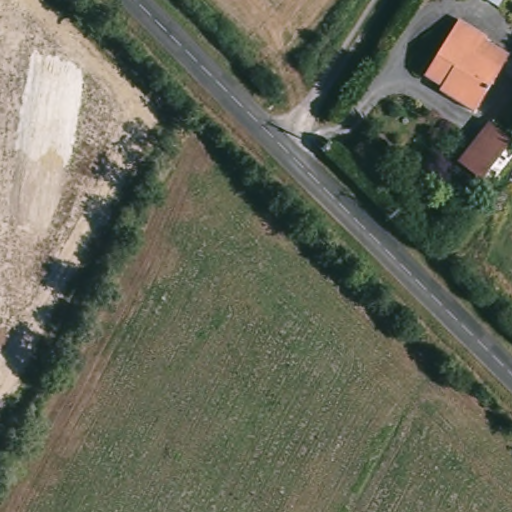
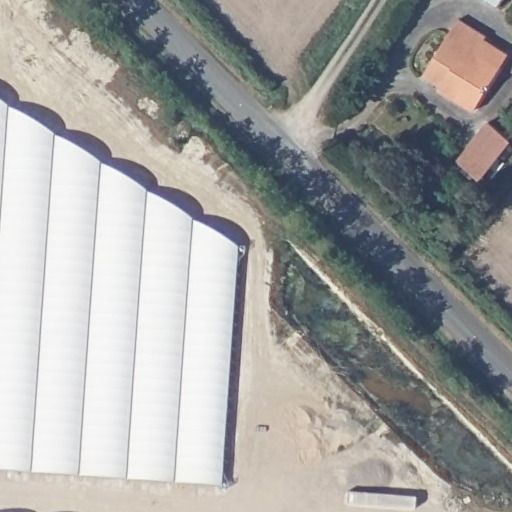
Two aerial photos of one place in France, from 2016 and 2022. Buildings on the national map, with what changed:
unchanged [(497,12),(477,0),(504,0),(497,12)]
unchanged [(484,39),(506,53),(496,70),(471,112),(435,90),(437,86),(421,75),(457,18),(486,36),(484,39)]
new [(235,250),(217,488),(0,472),(0,107),(235,250)]
unchanged [(508,141),(478,180),(455,160),(486,122),(508,141)]

